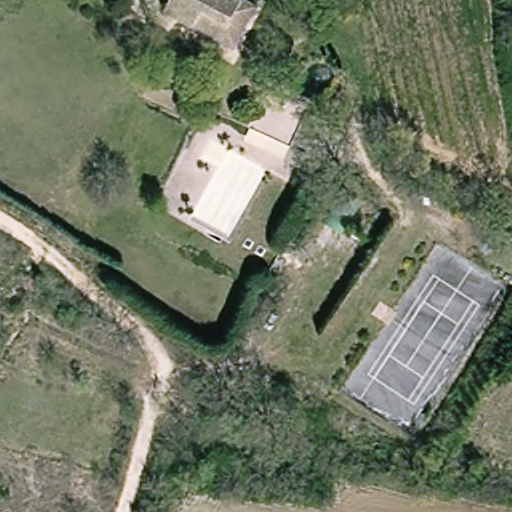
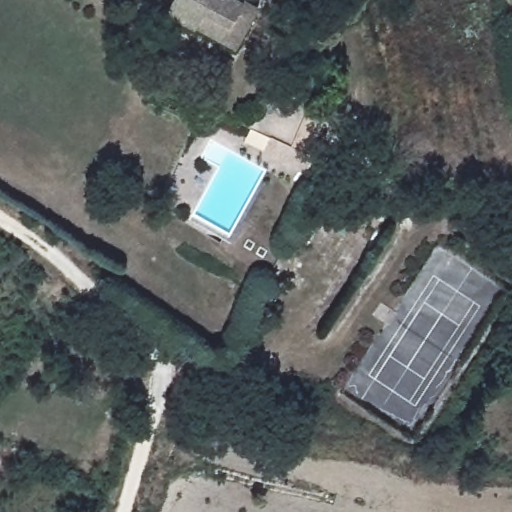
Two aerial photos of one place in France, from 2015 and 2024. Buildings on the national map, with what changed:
unchanged [(159,18),(167,0),(246,0),(255,5),(231,51),(159,18)]
unchanged [(269,81),(327,107),(300,167),(245,141),(269,81)]

